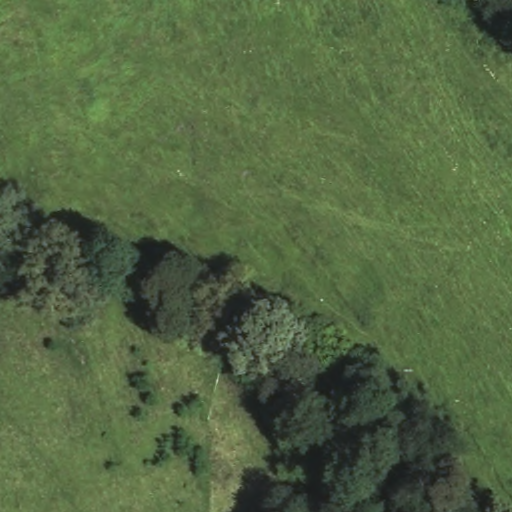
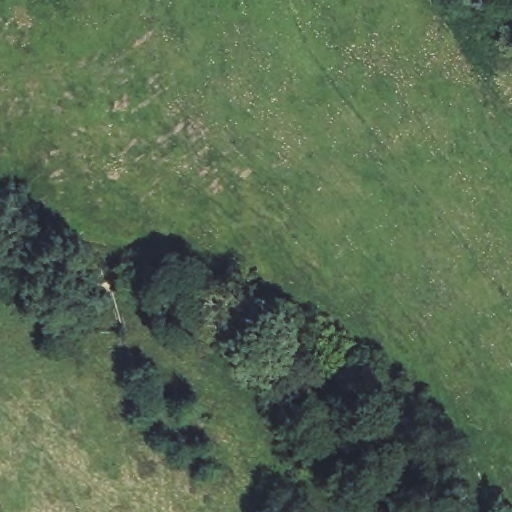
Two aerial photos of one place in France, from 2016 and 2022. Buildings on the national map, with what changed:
[]

